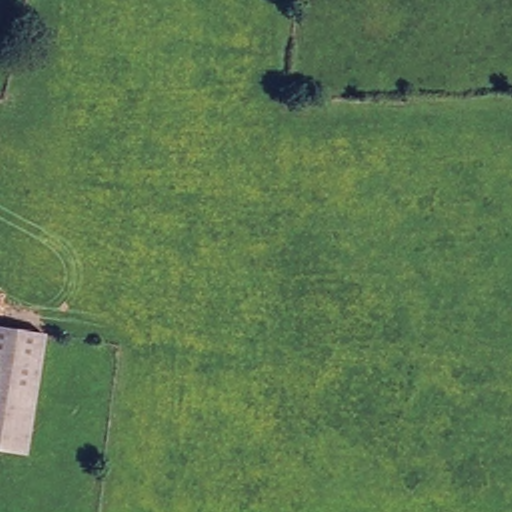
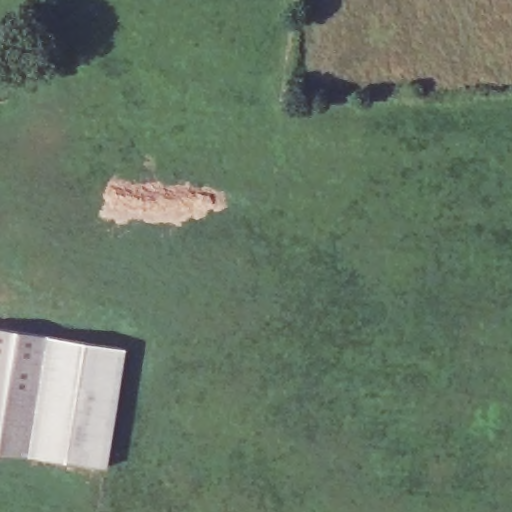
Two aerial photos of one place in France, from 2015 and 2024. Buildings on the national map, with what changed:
unchanged [(29,453),(0,449),(0,330),(45,336),(29,453)]
new [(45,336),(125,348),(109,466),(29,453),(45,336)]

